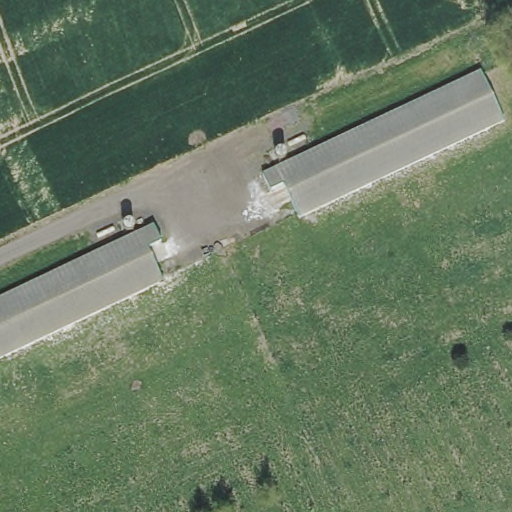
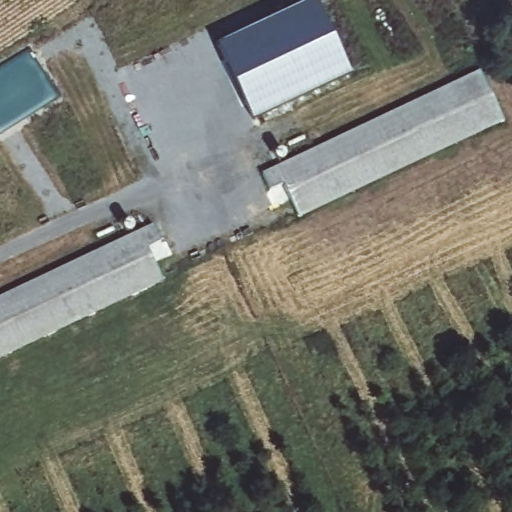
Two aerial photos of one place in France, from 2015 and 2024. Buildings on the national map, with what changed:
new [(315,0),(350,74),(254,120),(219,45),(315,0)]
unchanged [(264,178),(277,171),(274,161),(285,155),(289,164),(480,72),(504,121),(298,223),(288,203),(277,208),(264,178)]
unchanged [(123,241),(119,231),(132,226),(135,235),(152,229),(160,243),(148,250),(164,283),(0,365),(0,300),(123,241)]

